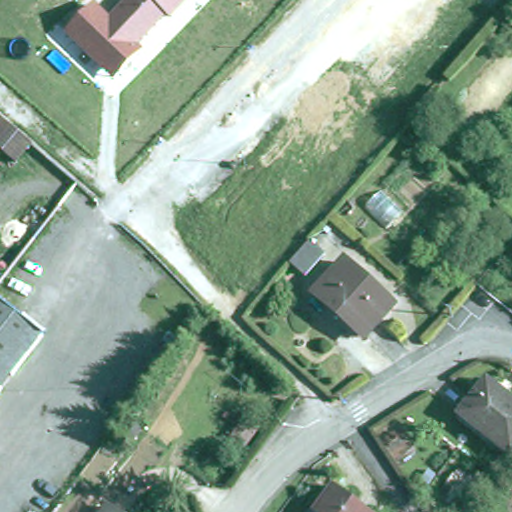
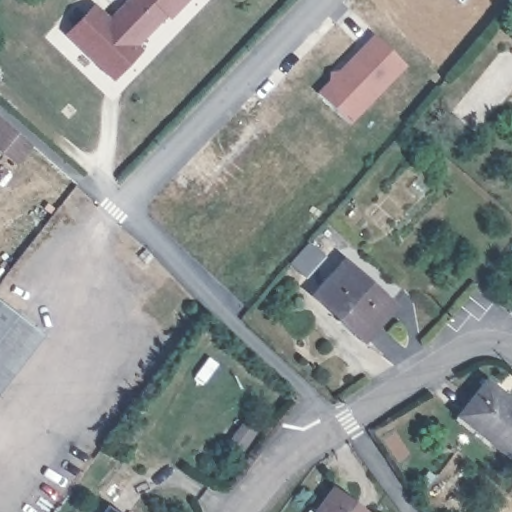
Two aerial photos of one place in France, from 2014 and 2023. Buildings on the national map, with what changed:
unchanged [(137,46),(143,50),(115,81),(65,36),(95,4),(111,17),(126,0),(185,0),(137,46)]
new [(376,37),(406,67),(350,125),(319,96),(376,37)]
unchanged [(32,146),(17,164),(0,149),(0,118),(32,146)]
unchanged [(310,244),(325,256),(305,277),(291,265),(310,244)]
unchanged [(341,269),(389,313),(360,345),(311,301),(341,269)]
unchanged [(44,342),(0,398),(0,308),(44,342)]
unchanged [(512,457),(511,459),(459,417),(487,382),(512,401),(512,457)]
unchanged [(318,512),(335,489),(367,512),(318,512)]

